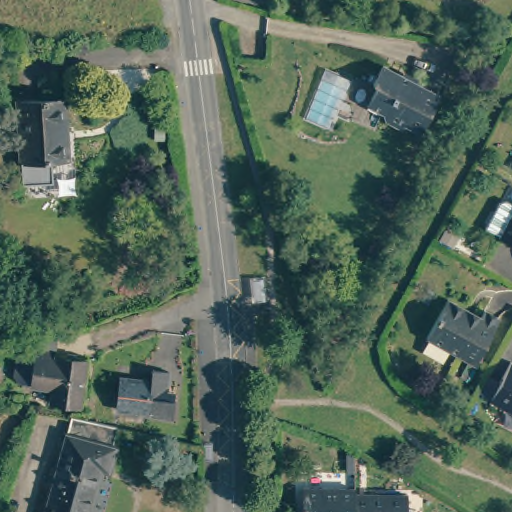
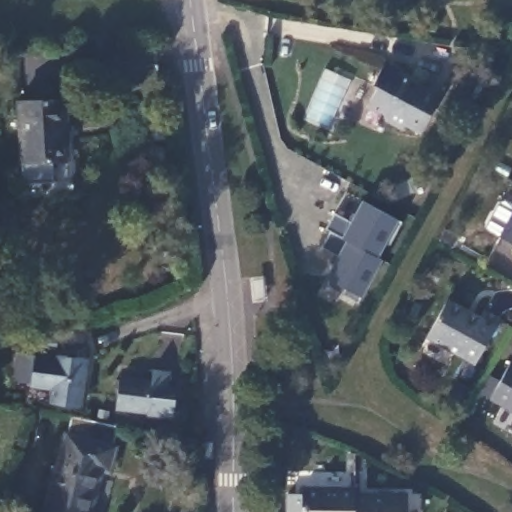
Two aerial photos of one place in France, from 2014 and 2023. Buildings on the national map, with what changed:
unchanged [(383,64),(440,95),(420,132),(404,124),(402,128),(385,119),(383,112),(367,104),(376,88),(374,83),(373,82),(383,64)]
unchanged [(63,98),(67,159),(21,162),(17,101),(63,98)]
new [(331,210),(348,220),(359,198),(399,220),(387,243),(382,240),(374,255),(388,262),(364,306),(347,297),(351,290),(332,280),(343,259),(327,250),(335,234),(322,227),(331,210)]
unchanged [(512,217),(512,250),(498,242),(512,217)]
unchanged [(458,377),(467,360),(426,337),(447,299),(480,317),(483,310),(499,319),(474,364),(465,381),(458,377)]
unchanged [(54,408),(56,394),(35,392),(35,389),(23,387),(18,381),(21,359),(39,361),(40,352),(35,351),(36,340),(62,342),(60,356),(59,360),(91,364),(85,412),(54,408)]
unchanged [(510,361),(512,362),(512,412),(488,399),(510,361)]
unchanged [(174,399),(173,416),(146,414),(146,412),(116,408),(120,377),(151,380),(152,368),(168,370),(166,391),(175,392),(174,399)]
unchanged [(10,378),(8,389),(0,387),(0,377),(10,378)]
unchanged [(113,431),(107,452),(109,453),(103,475),(96,473),(86,512),(42,512),(66,421),(81,424),(113,431)]
unchanged [(354,488),(354,494),(354,512),(301,512),(301,487),(354,488)]
unchanged [(407,494),(407,512),(354,512),(354,494),(407,494)]

